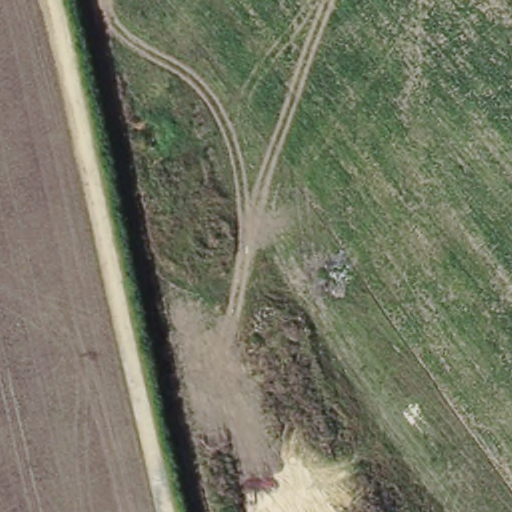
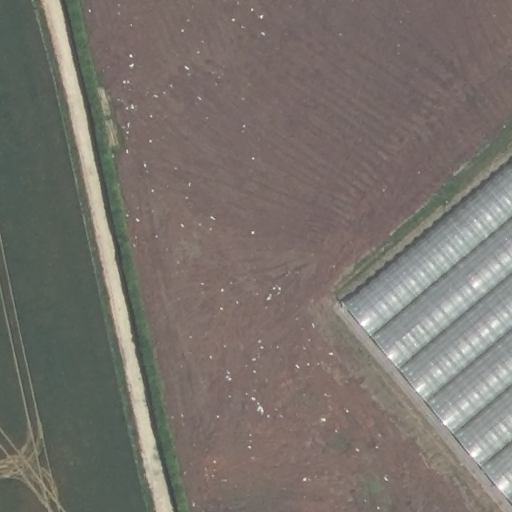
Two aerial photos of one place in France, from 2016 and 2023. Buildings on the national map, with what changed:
new [(512,157),(512,497),(342,298),(512,157)]

